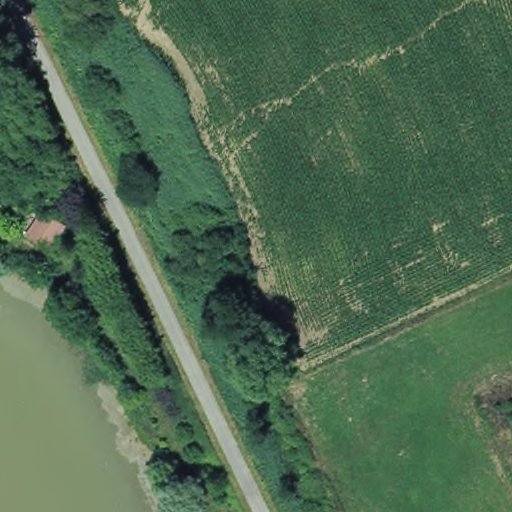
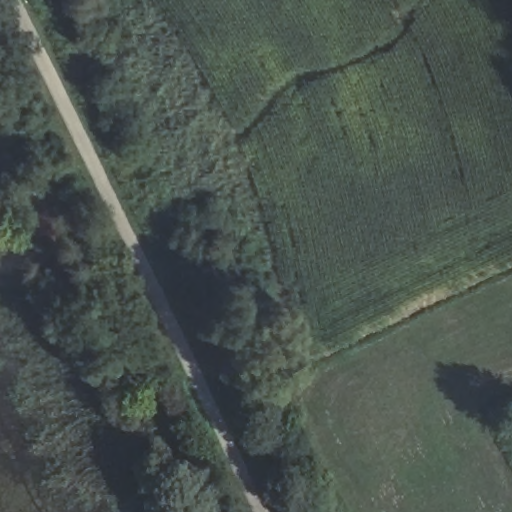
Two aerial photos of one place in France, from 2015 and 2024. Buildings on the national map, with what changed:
unchanged [(55,251),(31,237),(45,210),(70,225),(55,251)]

